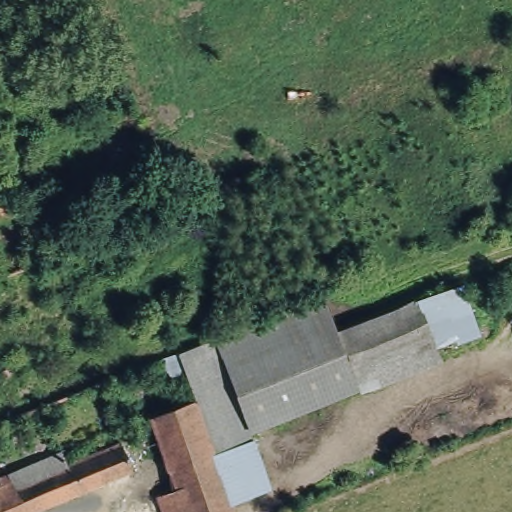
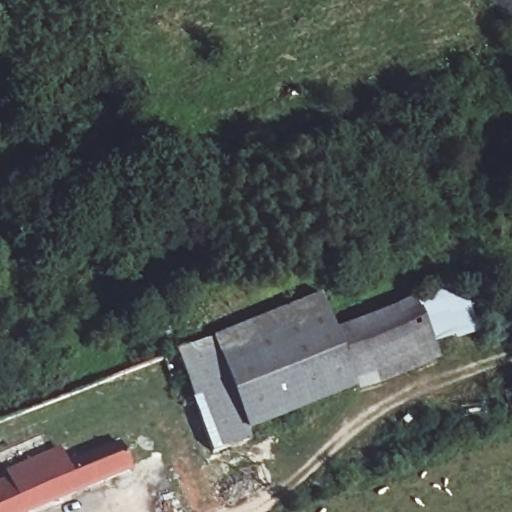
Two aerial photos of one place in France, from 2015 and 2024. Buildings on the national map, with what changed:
unchanged [(461,278),(480,327),(432,345),(414,295),(461,278)]
unchanged [(244,425),(209,331),(320,288),(335,325),(357,382),(244,425)]
unchanged [(335,325),(414,295),(432,345),(437,357),(358,386),(357,382),(335,325)]
unchanged [(247,433),(212,446),(192,393),(177,355),(174,345),(190,338),(209,331),(244,425),(247,433)]
demolished [(229,495),(235,512),(182,512),(182,511),(180,512),(160,512),(152,488),(170,481),(142,411),(192,393),(212,446),(229,495)]
unchanged [(10,485),(22,480),(17,470),(25,467),(33,465),(38,472),(115,441),(127,469),(31,512),(0,512),(0,481),(7,478),(10,485)]

